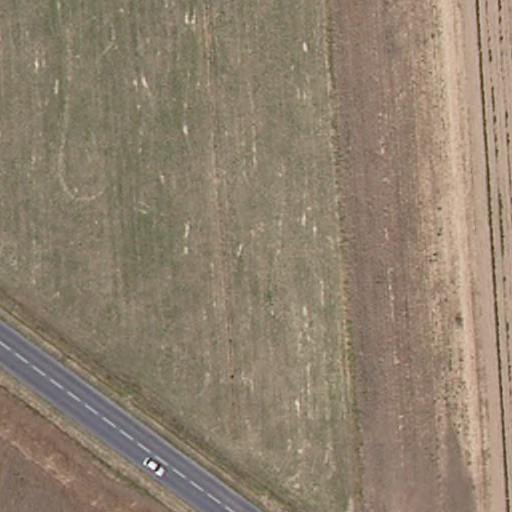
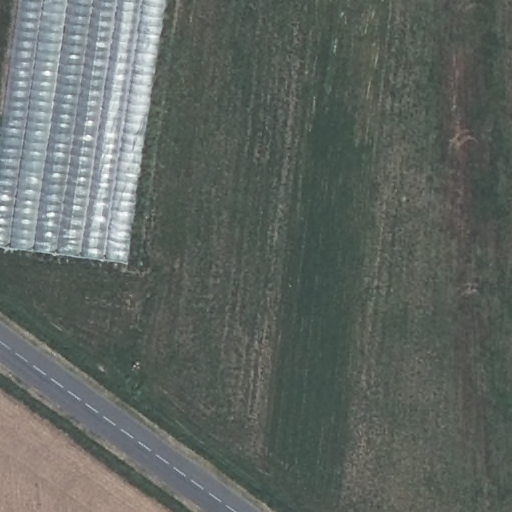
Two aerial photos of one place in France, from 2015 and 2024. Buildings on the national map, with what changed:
new [(0,0),(1,0),(0,10),(0,0)]
new [(0,246),(0,146),(20,0),(169,0),(130,263),(0,246)]

